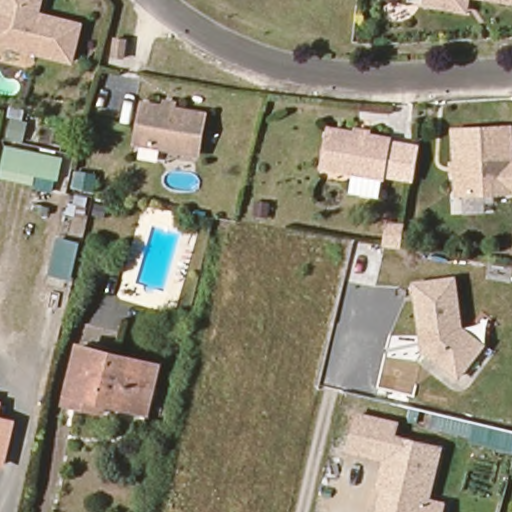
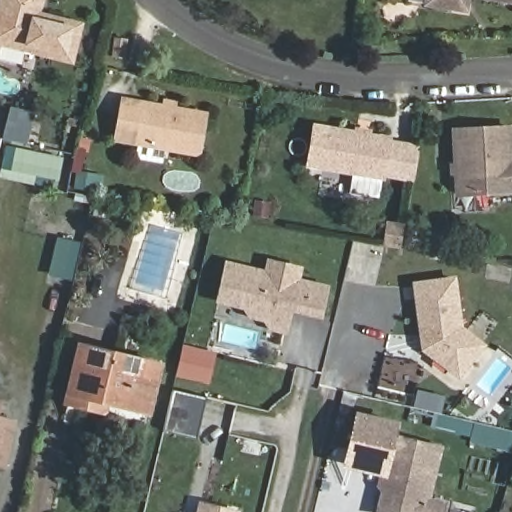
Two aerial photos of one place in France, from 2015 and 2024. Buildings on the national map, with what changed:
unchanged [(36,0),(33,12),(76,22),(67,59),(0,43),(0,0),(36,0)]
unchanged [(420,4),(421,0),(446,0),(445,8),(420,4)]
unchanged [(496,0),(511,0),(511,2),(496,0)]
unchanged [(159,106),(160,101),(170,103),(169,109),(201,114),(193,154),(131,142),(138,103),(159,106)]
unchanged [(455,130),(510,126),(512,153),(512,190),(459,194),(455,130)]
unchanged [(317,167),(323,130),(383,139),(377,176),(317,167)]
new [(418,146),(412,181),(377,175),(383,139),(418,146)]
unchanged [(56,160),(47,198),(21,192),(25,174),(7,169),(13,149),(56,160)]
unchanged [(393,247),(378,245),(382,225),(397,228),(393,247)]
new [(320,320),(291,312),(286,335),(266,330),(267,324),(248,319),(242,310),(214,303),(224,260),(264,270),(267,259),(303,267),(301,278),(328,285),(320,320)]
unchanged [(457,328),(479,345),(455,376),(421,349),(412,285),(451,280),(457,328)]
unchanged [(157,365),(146,415),(102,404),(100,413),(62,405),(74,347),(157,365)]
new [(188,349),(217,356),(210,383),(181,375),(188,349)]
new [(200,422),(199,437),(181,436),(181,432),(169,432),(171,393),(204,395),(202,422),(200,422)]
unchanged [(442,512),(382,512),(376,510),(383,481),(378,480),(381,470),(384,454),(347,445),(356,411),(393,420),(391,433),(437,443),(425,497),(444,501),(442,512)]
unchanged [(16,420),(3,472),(0,471),(0,415),(16,420)]
unchanged [(473,422),(512,431),(512,454),(468,443),(473,422)]
new [(240,512),(194,512),(197,500),(241,510),(240,512)]

